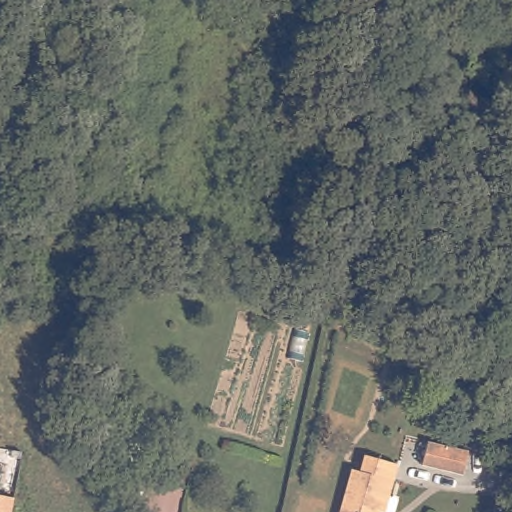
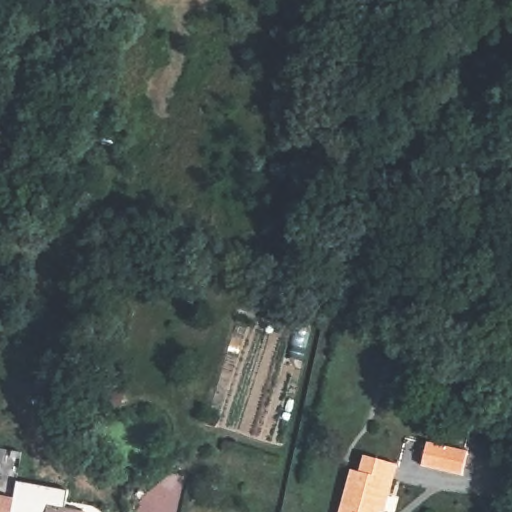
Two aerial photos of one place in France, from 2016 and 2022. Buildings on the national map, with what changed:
unchanged [(425,467),(431,445),(471,456),(465,478),(425,467)]
unchanged [(355,469),(361,452),(394,463),(379,509),(373,508),(372,512),(334,512),(347,467),(355,469)]
new [(71,493),(67,511),(74,512),(14,512),(19,482),(71,493)]
unchanged [(13,512),(0,512),(0,497),(16,501),(13,512)]

